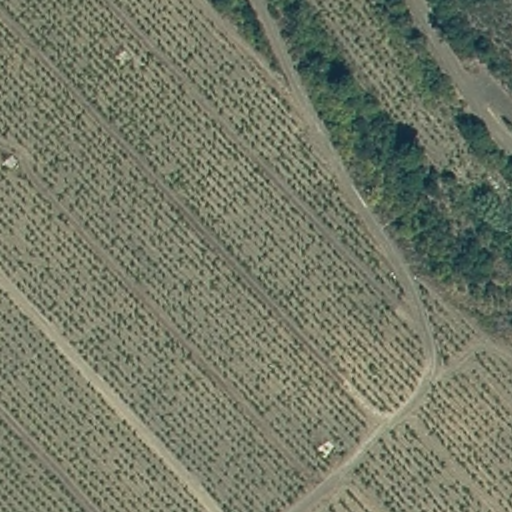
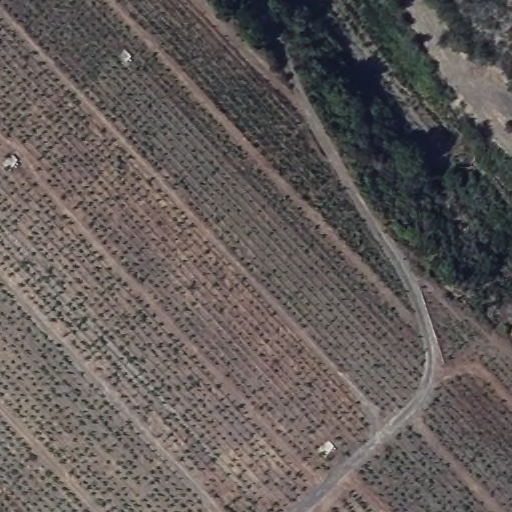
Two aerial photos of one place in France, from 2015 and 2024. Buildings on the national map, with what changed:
[]

